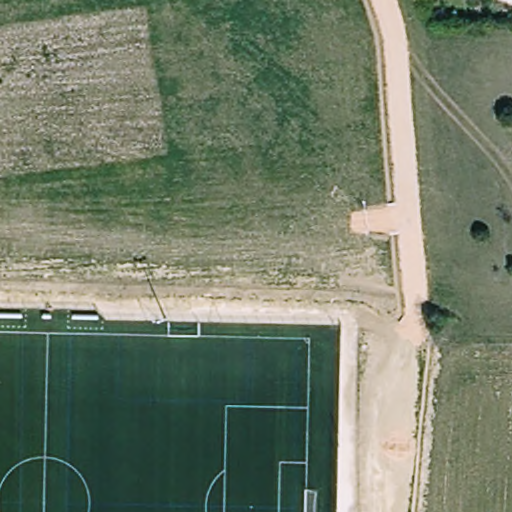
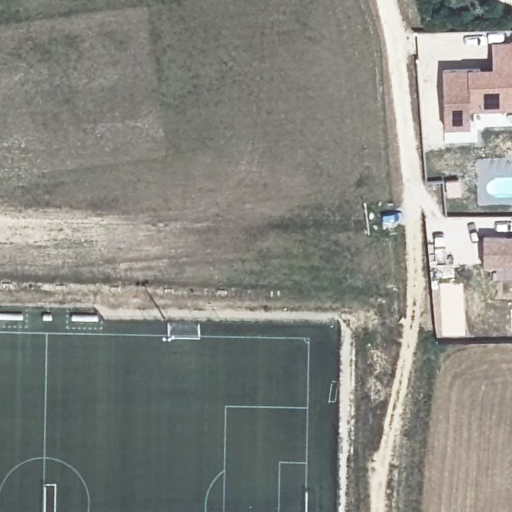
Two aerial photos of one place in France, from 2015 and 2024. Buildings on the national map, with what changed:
new [(492,69),(491,41),(512,41),(512,109),(470,110),(470,127),(443,129),(441,69),(467,69),(492,69)]
new [(512,267),(485,267),(485,239),(512,239),(512,267)]

